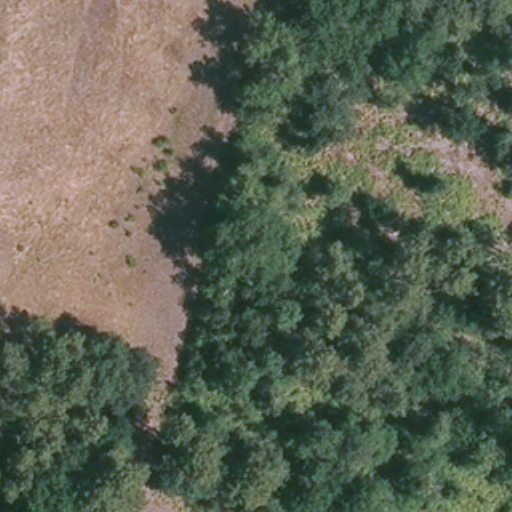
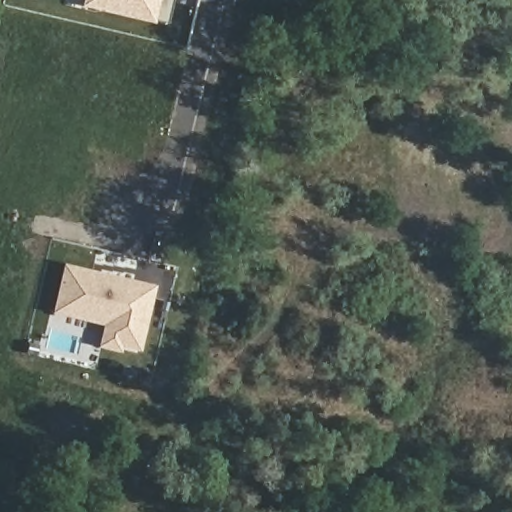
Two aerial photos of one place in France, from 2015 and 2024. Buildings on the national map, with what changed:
new [(166,22),(78,4),(79,0),(172,0),(166,22)]
new [(152,281),(140,351),(96,343),(99,323),(50,314),(60,263),(152,281)]

